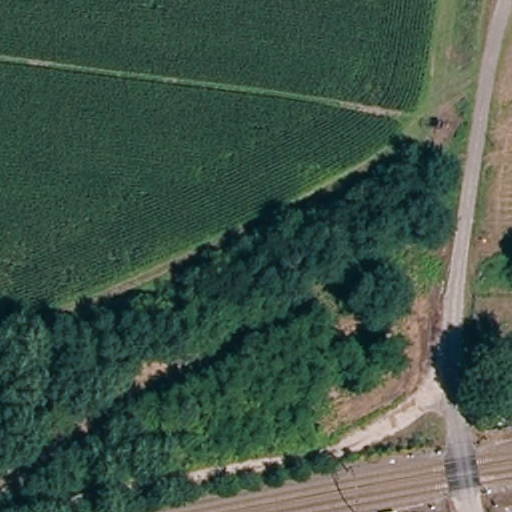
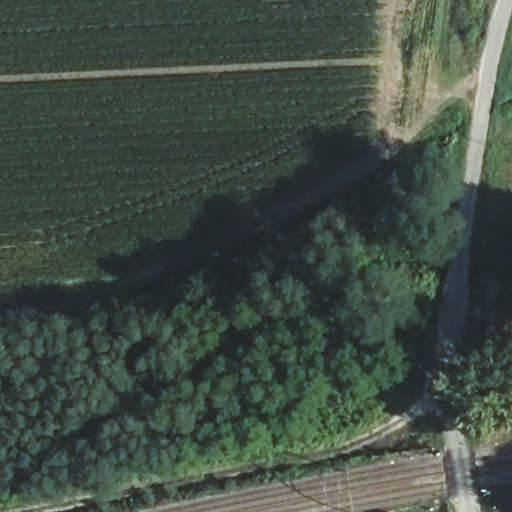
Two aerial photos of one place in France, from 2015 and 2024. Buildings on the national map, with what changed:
unchanged [(509,386),(512,386),(512,401),(509,386)]
unchanged [(484,430),(482,419),(494,416),(497,427),(484,430)]

